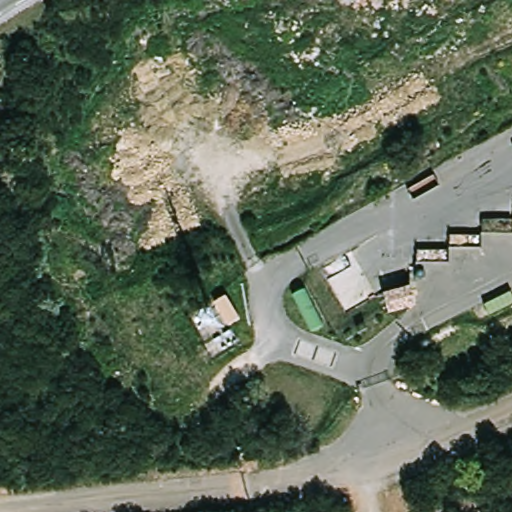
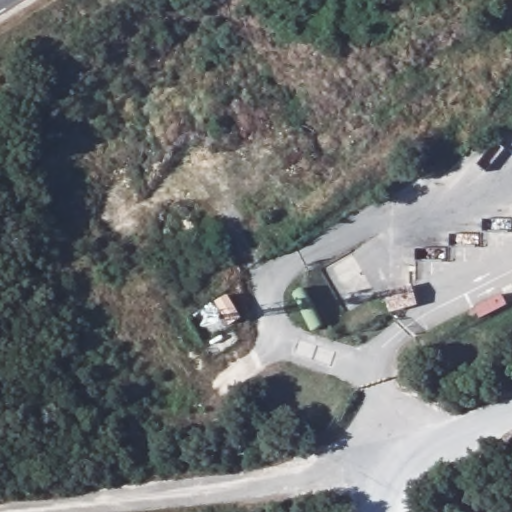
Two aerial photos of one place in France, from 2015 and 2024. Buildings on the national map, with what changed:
unchanged [(381,296),(393,291),(409,285),(416,303),(393,312),(388,314),(381,296)]
unchanged [(307,332),(288,292),(303,286),(322,325),(307,332)]

